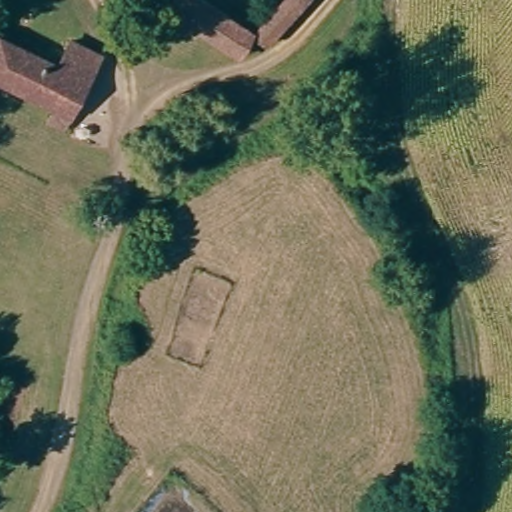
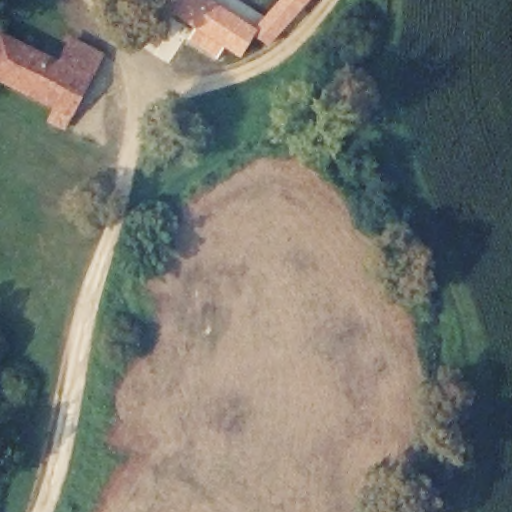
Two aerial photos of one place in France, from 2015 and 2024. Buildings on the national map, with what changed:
unchanged [(282,0),(318,0),(278,49),(254,35),(244,50),(174,5),(178,0),(217,0),(260,29),(282,0)]
unchanged [(68,128),(55,119),(59,114),(0,76),(0,25),(73,73),(86,48),(111,64),(68,128)]

